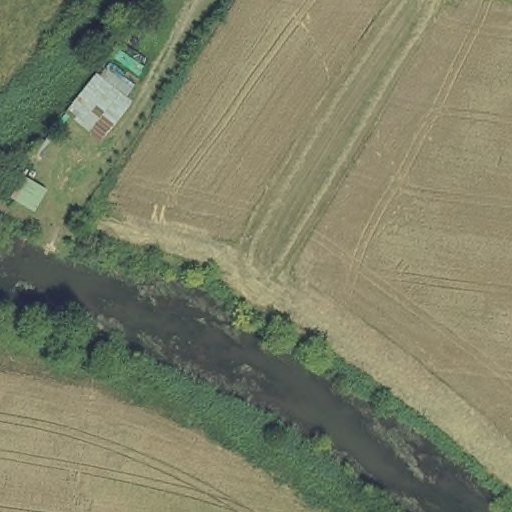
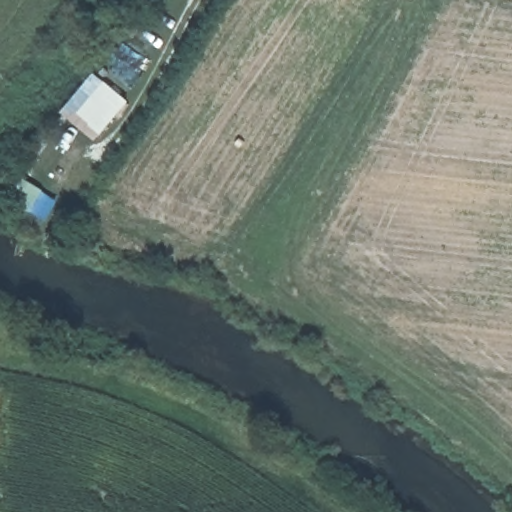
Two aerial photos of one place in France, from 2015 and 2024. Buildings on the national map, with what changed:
unchanged [(123,96),(128,99),(99,143),(62,113),(93,73),(121,47),(145,67),(123,96)]

